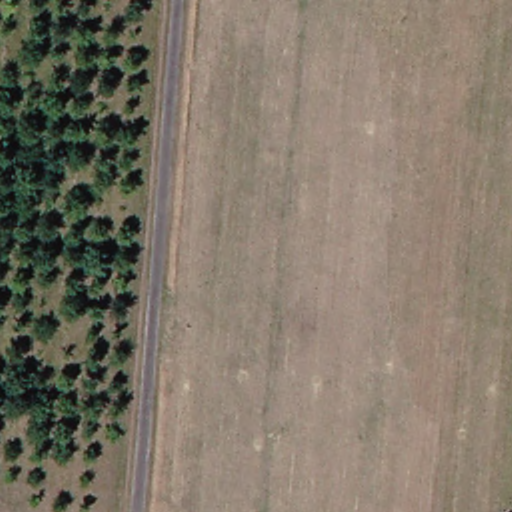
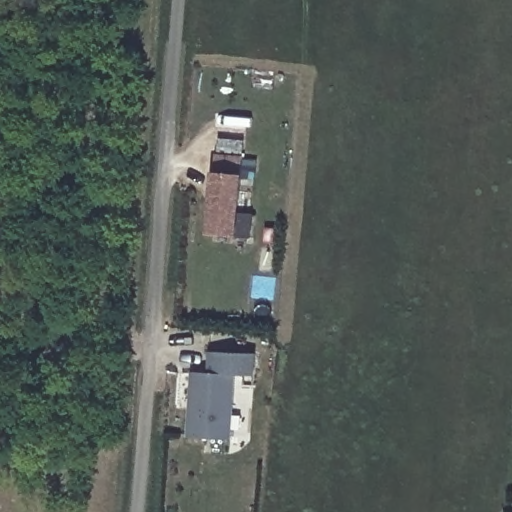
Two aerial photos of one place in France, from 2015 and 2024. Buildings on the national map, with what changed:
new [(244,155),(242,175),(239,236),(207,234),(212,172),(217,152),(244,155)]
new [(237,375),(234,441),(187,439),(190,372),(237,375)]

